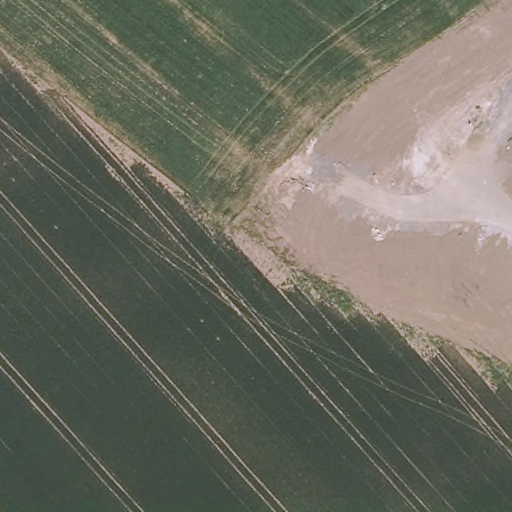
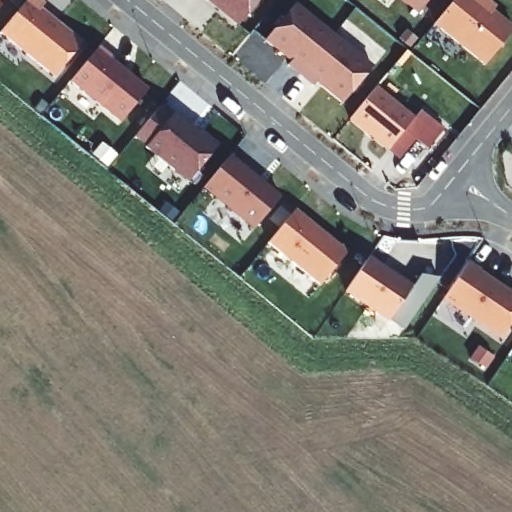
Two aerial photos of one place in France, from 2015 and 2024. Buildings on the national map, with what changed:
new [(0,32),(28,0),(39,0),(43,4),(40,7),(79,42),(53,76),(0,32)]
new [(206,0),(260,0),(237,27),(206,0)]
new [(414,12),(400,0),(424,0),(414,12)]
new [(483,64),(434,24),(453,0),(489,0),(496,5),(492,11),(512,27),(483,64)]
new [(371,67),(340,102),(315,82),(312,86),(289,67),(291,64),(266,41),(296,6),(371,67)]
new [(146,88),(120,122),(70,82),(97,47),(146,88)]
new [(389,150),(349,119),(376,87),(412,117),(389,150)]
new [(218,147),(188,184),(146,148),(149,144),(140,136),(160,107),(171,117),(174,113),(218,147)]
new [(443,127),(427,146),(413,137),(396,159),(389,150),(412,117),(417,110),(443,127)]
new [(204,189),(228,158),(276,199),(251,229),(204,189)]
new [(346,251),(319,286),(268,244),(294,211),(346,251)]
new [(364,257),(379,267),(378,269),(385,273),(389,273),(408,287),(385,320),(341,291),(364,257)]
new [(512,292),(512,320),(502,337),(444,300),(468,263),(512,292)]

